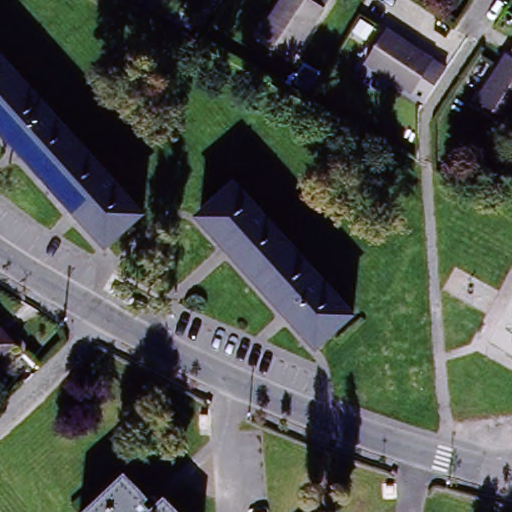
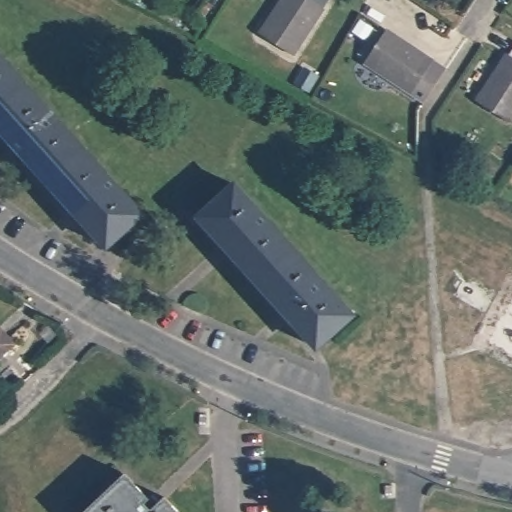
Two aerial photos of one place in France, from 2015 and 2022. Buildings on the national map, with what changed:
unchanged [(288,0),(329,0),(290,56),(263,37),(288,0)]
unchanged [(429,57),(427,62),(445,72),(426,101),(367,63),(389,31),(429,57)]
unchanged [(508,124),(477,102),(509,51),(512,52),(512,118),(508,124)]
unchanged [(140,214),(103,246),(0,129),(0,52),(140,214)]
unchanged [(318,347),(199,217),(235,184),(355,314),(318,347)]
unchanged [(0,356),(0,327),(15,341),(0,356)]
unchanged [(127,477),(147,497),(156,489),(177,512),(89,512),(127,477)]

